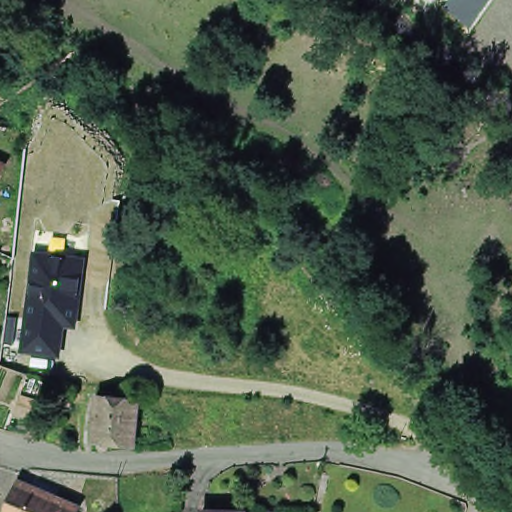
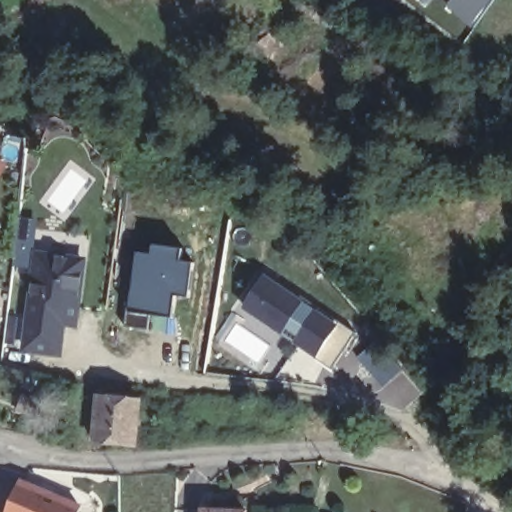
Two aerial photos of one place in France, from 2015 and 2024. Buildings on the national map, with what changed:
new [(495,0),(475,29),(447,5),(452,0),(495,0)]
unchanged [(0,182),(0,160),(8,164),(0,182)]
new [(190,299),(177,297),(173,319),(152,317),(148,329),(127,326),(129,314),(137,251),(150,253),(152,244),(185,249),(182,261),(195,262),(190,299)]
unchanged [(87,260),(80,329),(68,329),(62,361),(25,356),(40,255),(87,260)]
new [(300,296),(357,334),(332,371),(315,359),(317,357),(256,316),(246,309),(267,279),(277,286),(297,300),(300,296)]
unchanged [(52,384),(75,387),(73,405),(50,402),(52,384)]
unchanged [(105,391),(127,393),(127,399),(147,400),(142,447),(100,443),(105,397),(105,391)]
unchanged [(378,439),(364,437),(367,426),(381,430),(378,439)]
unchanged [(27,484),(86,508),(85,512),(14,512),(27,484)]
unchanged [(247,505),(246,512),(203,512),(203,504),(235,504),(247,505)]

